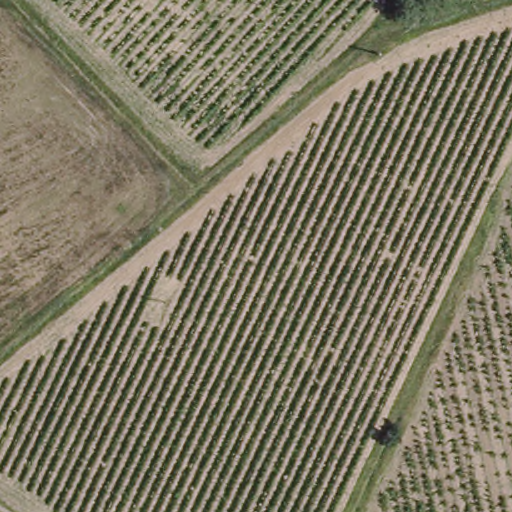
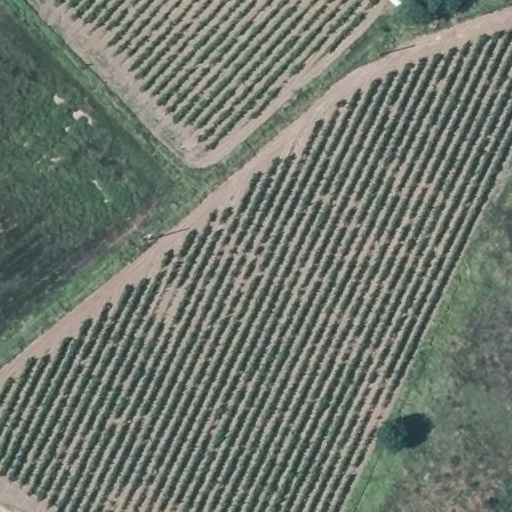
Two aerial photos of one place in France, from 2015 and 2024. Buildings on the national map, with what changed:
unchanged [(415,3),(412,0),(418,0),(415,3)]

